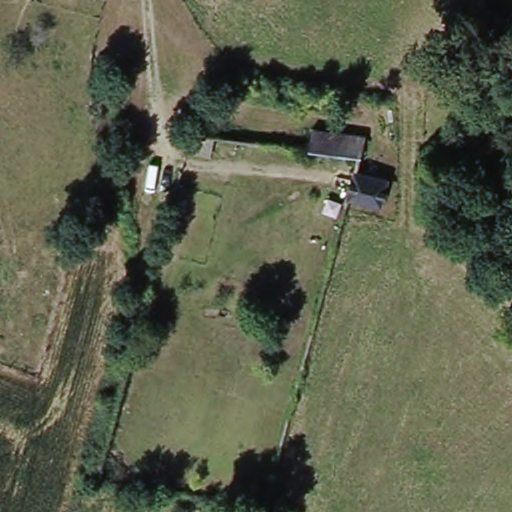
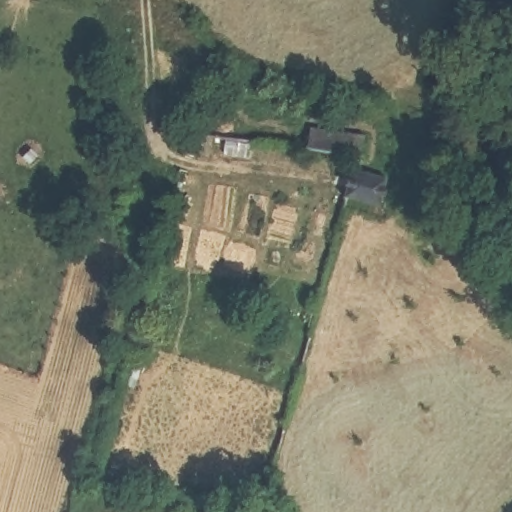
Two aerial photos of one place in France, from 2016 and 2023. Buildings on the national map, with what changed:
unchanged [(346,164),(309,152),(312,133),(370,143),(365,174),(389,180),(382,211),(337,197),(346,164)]

